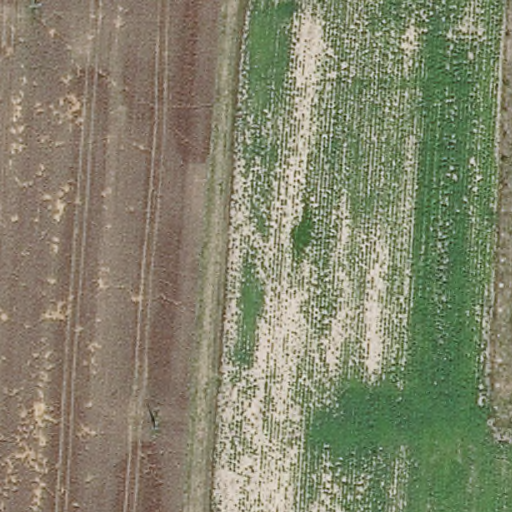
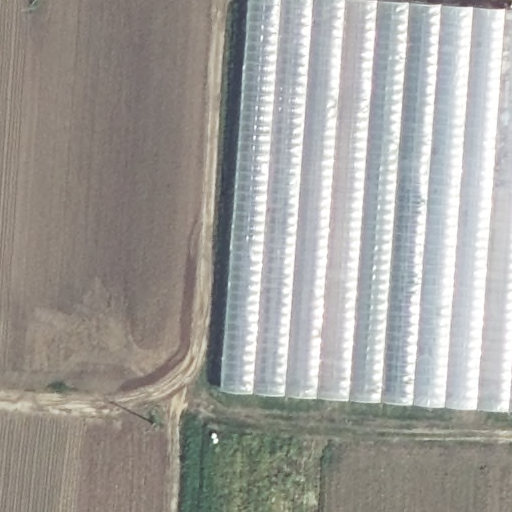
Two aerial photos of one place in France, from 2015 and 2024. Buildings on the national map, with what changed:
new [(231,251),(260,256),(262,206),(260,206),(240,210),(237,228),(234,227),(241,79),(249,0),(430,0),(512,6),(512,410),(220,389),(224,326),(231,251)]
demolished [(435,17),(461,17),(451,315),(423,314),(435,17)]
demolished [(134,107),(114,390),(88,389),(107,104),(134,107)]

